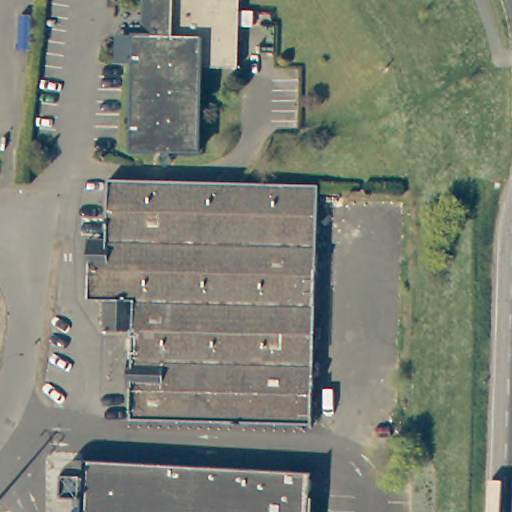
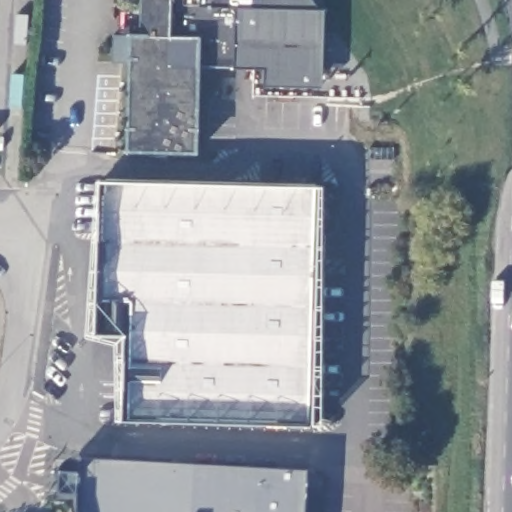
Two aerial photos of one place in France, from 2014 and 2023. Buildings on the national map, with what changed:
unchanged [(247,11),(247,25),(235,25),(233,66),(197,66),(195,152),(128,150),(131,65),(138,65),(140,0),(236,0),(236,10),(247,11)]
new [(328,9),(325,86),(267,83),(266,67),(237,65),(233,66),(235,25),(247,25),(247,11),(236,10),(236,0),(316,0),(321,8),(328,9)]
unchanged [(125,362),(129,361),(129,333),(102,332),(102,301),(87,301),(87,273),(83,272),(85,243),(102,243),(102,181),(143,182),(315,187),(310,428),(137,423),(129,423),(129,421),(129,393),(125,393),(125,362)]
unchanged [(82,499),(62,499),(62,477),(83,477),(84,462),(312,475),(309,512),(81,512),(82,499)]

